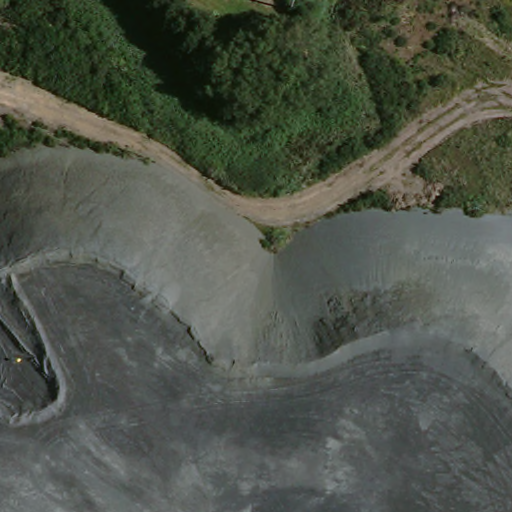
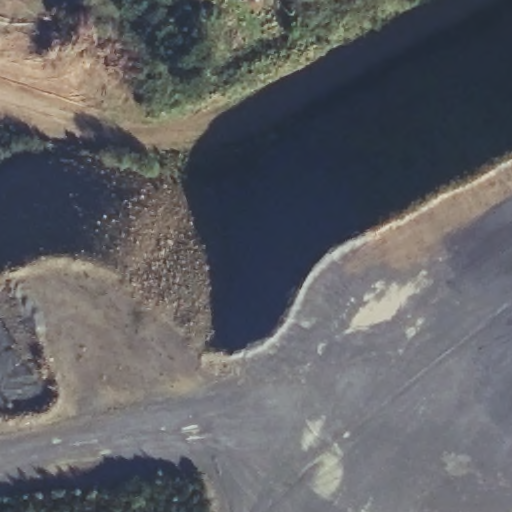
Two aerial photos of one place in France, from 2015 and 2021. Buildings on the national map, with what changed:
unchanged [(249,5),(246,0),(257,0),(249,5)]

